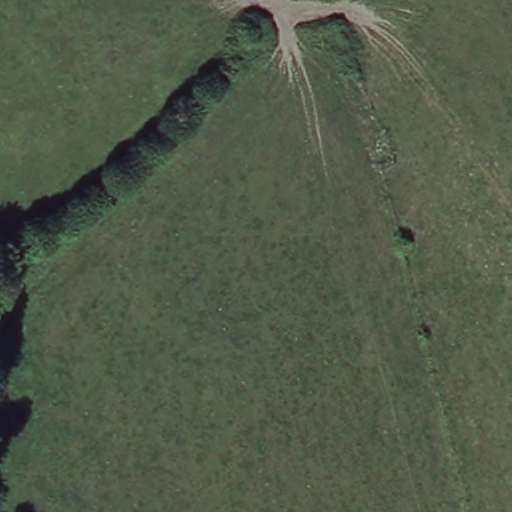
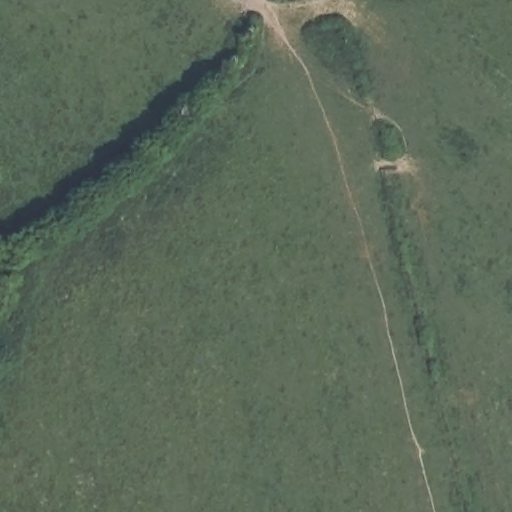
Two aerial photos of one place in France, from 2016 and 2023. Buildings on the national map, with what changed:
[]

